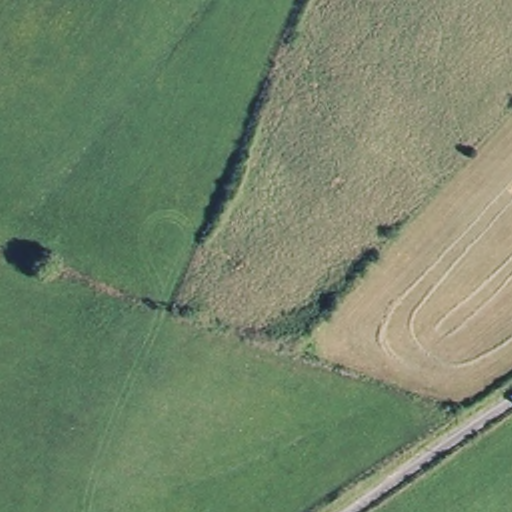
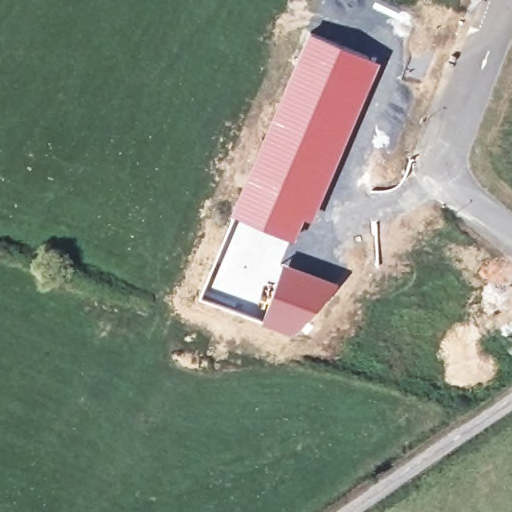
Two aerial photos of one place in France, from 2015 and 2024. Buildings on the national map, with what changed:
new [(231,219),(229,217),(307,30),(379,60),(311,222),(303,220),(283,265),(261,322),(234,312),(202,297),(231,219)]
new [(261,322),(283,265),(337,283),(330,295),(304,325),(292,337),(260,326),(261,322)]

